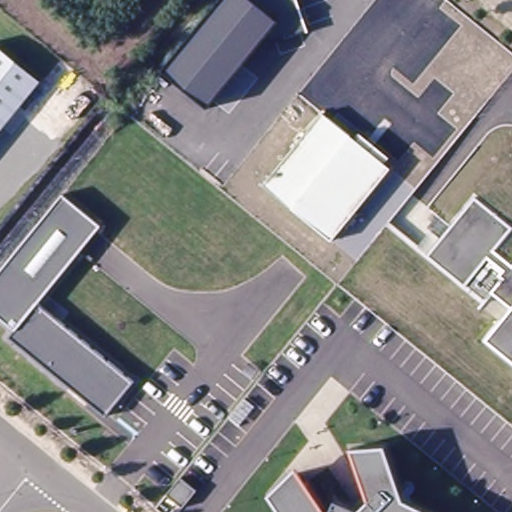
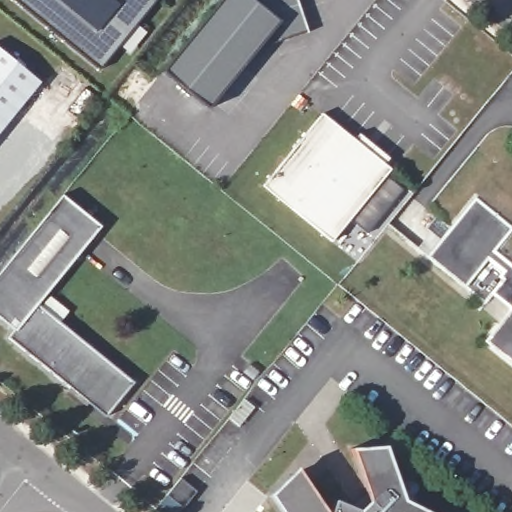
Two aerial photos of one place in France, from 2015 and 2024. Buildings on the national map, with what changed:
new [(13,0),(160,0),(102,72),(13,0)]
unchanged [(300,0),(310,29),(274,29),(212,105),(167,68),(221,0),(300,0)]
unchanged [(0,133),(0,53),(39,84),(0,133)]
unchanged [(388,157),(385,164),(391,169),(331,240),(263,185),(320,112),(355,139),(359,133),(388,157)]
unchanged [(41,307),(96,351),(137,385),(109,420),(67,386),(11,340),(17,332),(0,318),(0,277),(65,197),(104,229),(41,307)]
unchanged [(512,229),(495,249),(512,264),(512,361),(485,340),(510,309),(490,292),(482,301),(465,286),(427,255),(474,197),(512,228),(512,229)]
unchanged [(335,501),(361,510),(372,502),(352,447),(386,447),(404,498),(433,512),(330,512),(335,501)]
unchanged [(271,493),(298,465),(327,512),(282,512),(271,493)]
new [(182,480),(199,493),(184,510),(168,497),(182,480)]

